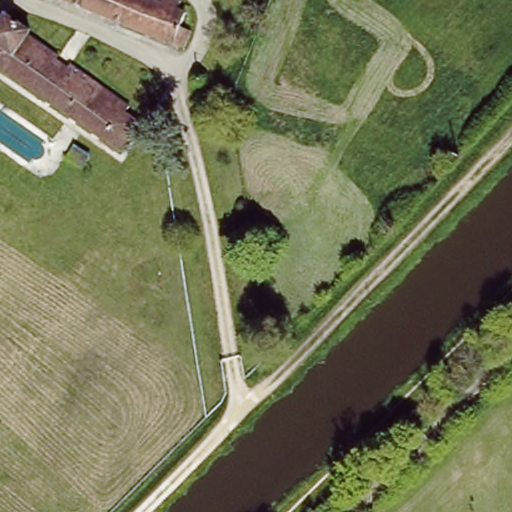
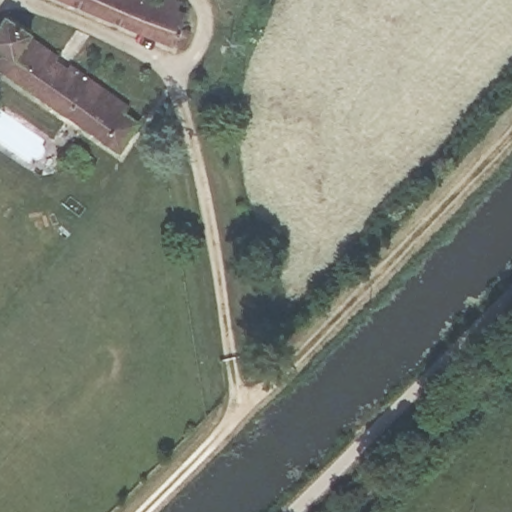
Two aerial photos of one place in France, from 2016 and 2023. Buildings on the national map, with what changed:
unchanged [(167,0),(174,0),(186,4),(183,15),(188,17),(183,30),(196,35),(188,53),(62,0),(148,0),(165,7),(167,0)]
unchanged [(8,21),(68,62),(61,71),(72,79),(80,70),(136,110),(134,113),(145,121),(123,153),(0,67),(0,32),(8,21)]

